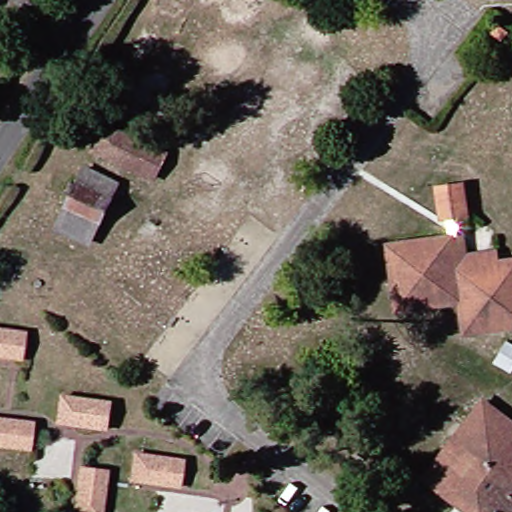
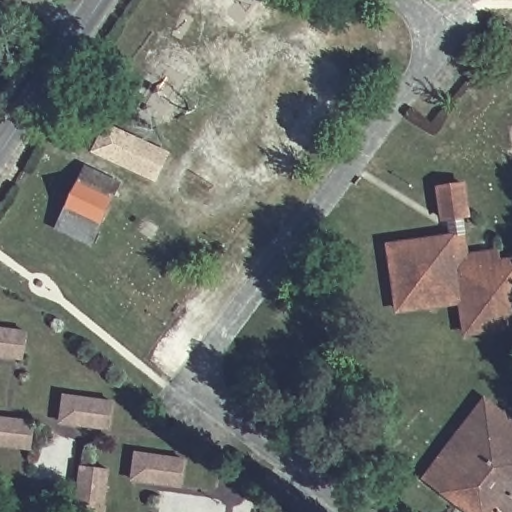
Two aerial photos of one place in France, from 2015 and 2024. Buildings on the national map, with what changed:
unchanged [(2,21),(0,21),(0,5),(8,9),(2,21)]
unchanged [(159,149),(144,178),(88,152),(100,128),(159,149)]
unchanged [(67,176),(73,154),(128,178),(120,199),(67,176)]
unchanged [(106,231),(56,206),(67,176),(120,199),(106,231)]
unchanged [(434,183),(468,180),(471,215),(439,219),(434,183)]
unchanged [(100,255),(44,230),(56,206),(106,231),(100,255)]
unchanged [(463,333),(458,306),(396,313),(389,239),(448,232),(462,227),(467,247),(484,241),(487,256),(512,254),(512,327),(463,333)]
unchanged [(16,356),(0,355),(0,326),(19,327),(16,356)]
unchanged [(492,512),(447,479),(437,494),(417,481),(441,448),(474,395),(486,402),(512,421),(512,512),(492,512)]
unchanged [(108,398),(106,425),(68,426),(68,420),(69,396),(108,398)]
unchanged [(24,447),(0,444),(0,419),(25,420),(24,447)]
unchanged [(180,456),(176,486),(139,483),(139,480),(141,453),(180,456)]
unchanged [(75,507),(79,470),(105,473),(101,508),(75,507)]
unchanged [(492,512),(461,512),(437,494),(447,479),(492,512)]

